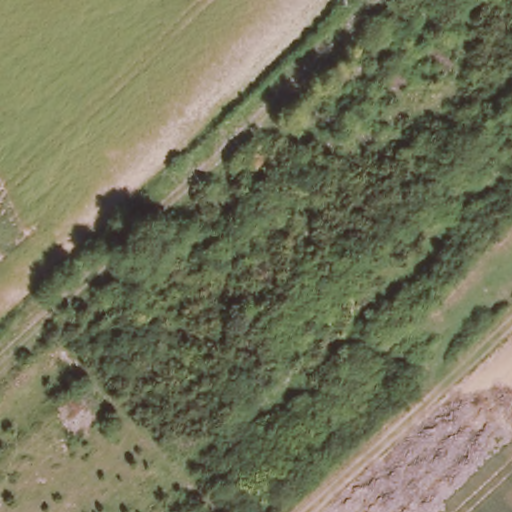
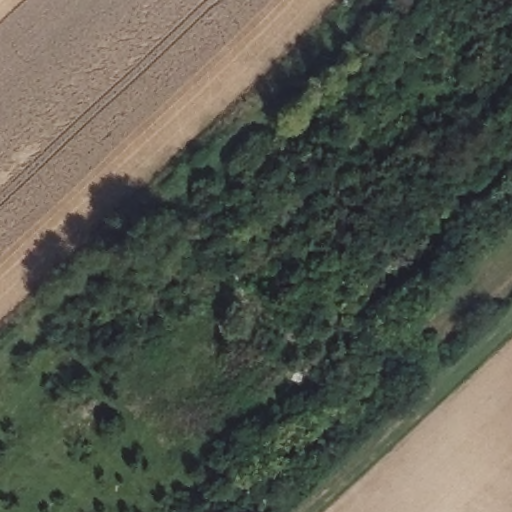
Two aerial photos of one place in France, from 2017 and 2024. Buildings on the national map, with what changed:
[]

